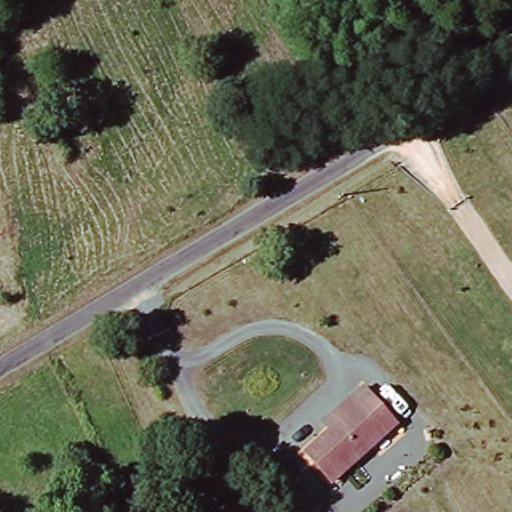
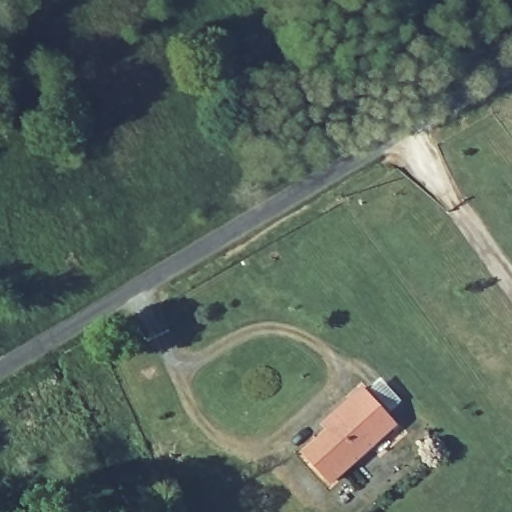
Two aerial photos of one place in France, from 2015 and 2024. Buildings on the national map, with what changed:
unchanged [(362,388),(395,424),(331,482),(303,452),(362,388)]

